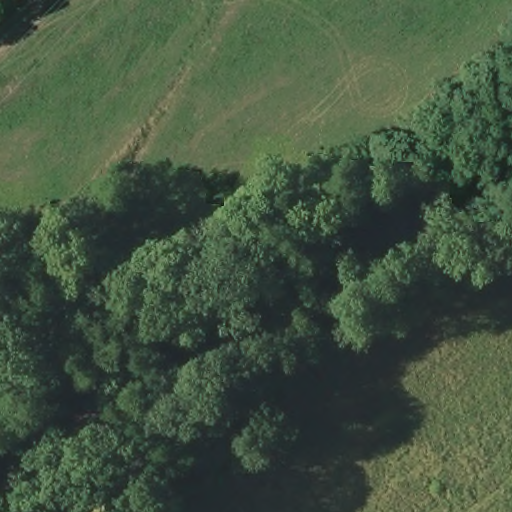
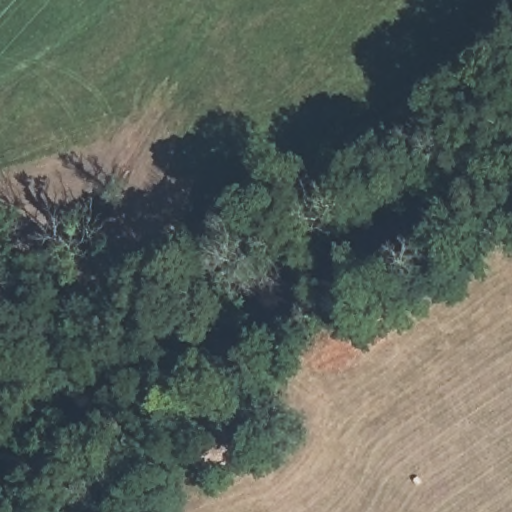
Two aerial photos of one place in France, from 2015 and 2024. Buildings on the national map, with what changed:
unchanged [(260,437),(216,477),(201,460),(249,425),(260,437)]

